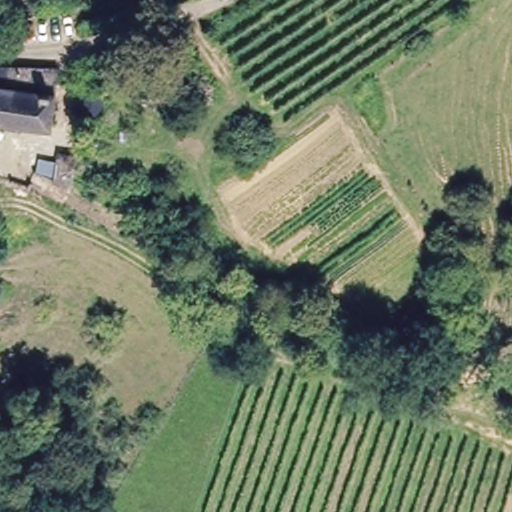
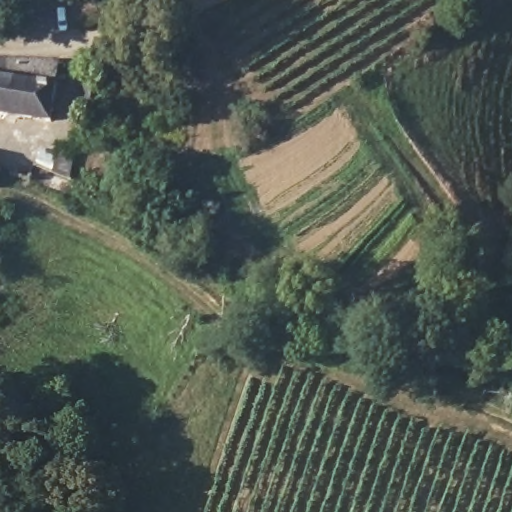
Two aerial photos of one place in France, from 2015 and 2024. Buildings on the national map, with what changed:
unchanged [(59,75),(46,124),(0,115),(0,61),(61,65),(59,75)]
unchanged [(108,81),(104,105),(85,100),(90,76),(108,81)]
unchanged [(40,147),(56,151),(59,142),(75,146),(70,173),(36,161),(40,147)]

